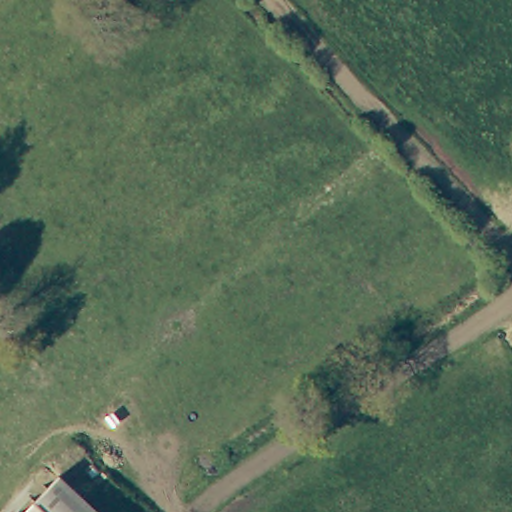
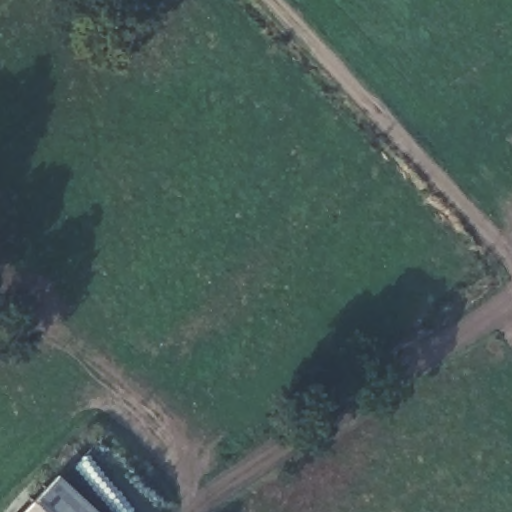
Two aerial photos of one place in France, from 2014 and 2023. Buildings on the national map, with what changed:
unchanged [(50,478),(85,512),(17,512),(32,496),(50,478)]

